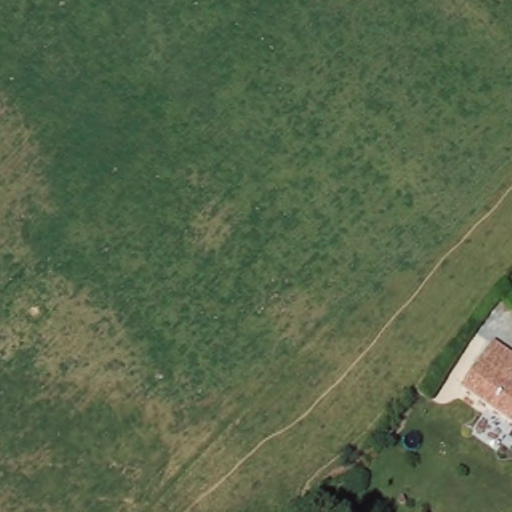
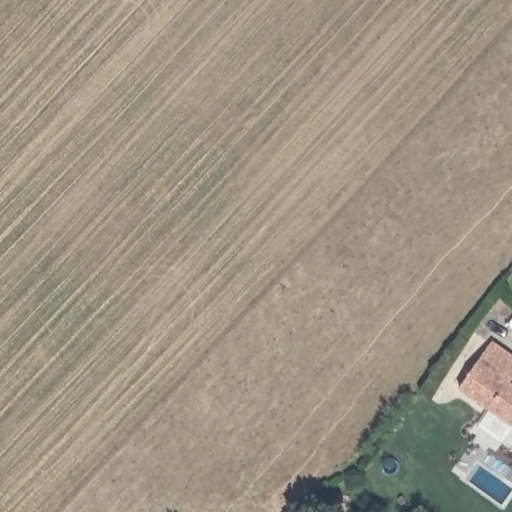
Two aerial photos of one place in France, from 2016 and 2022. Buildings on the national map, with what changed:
unchanged [(461,391),(492,345),(512,358),(512,384),(510,387),(512,388),(512,427),(461,391)]

